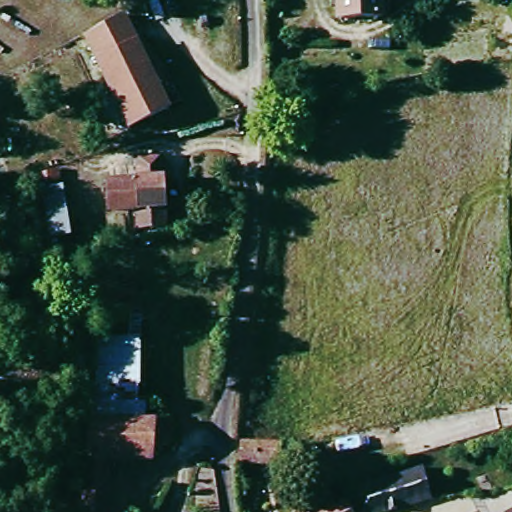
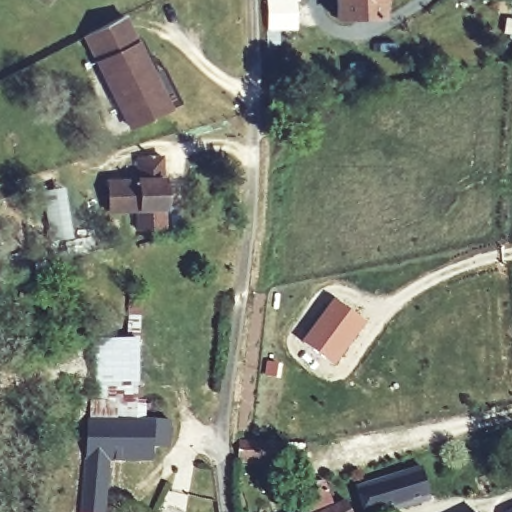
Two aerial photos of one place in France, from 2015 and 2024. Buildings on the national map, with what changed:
unchanged [(338,13),(338,0),(385,0),(385,11),(338,13)]
unchanged [(95,61),(85,35),(126,13),(142,38),(154,70),(165,64),(181,101),(172,106),(129,130),(95,61)]
unchanged [(137,211),(113,212),(110,180),(140,175),(142,157),(165,158),(160,231),(137,230),(137,211)]
unchanged [(96,338),(127,338),(132,294),(144,295),(142,339),(140,400),(147,401),(146,414),(121,412),(119,432),(89,430),(96,338)]
new [(336,365),(304,342),(335,298),(369,322),(336,365)]
unchanged [(175,429),(174,458),(117,455),(90,454),(89,430),(119,432),(121,412),(146,414),(151,415),(150,425),(175,429)]
new [(281,443),(280,465),(238,463),(237,442),(281,443)]
unchanged [(90,510),(90,454),(117,455),(115,510),(90,510)]
unchanged [(435,500),(394,512),(368,512),(361,490),(424,472),(435,500)]
unchanged [(306,497),(332,487),(336,505),(343,503),(355,511),(356,512),(312,512),(306,497)]

